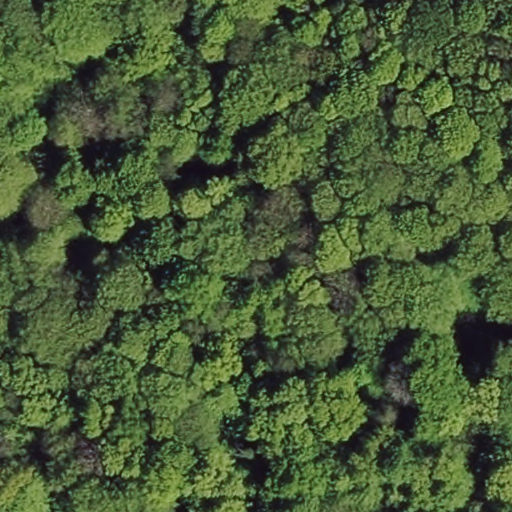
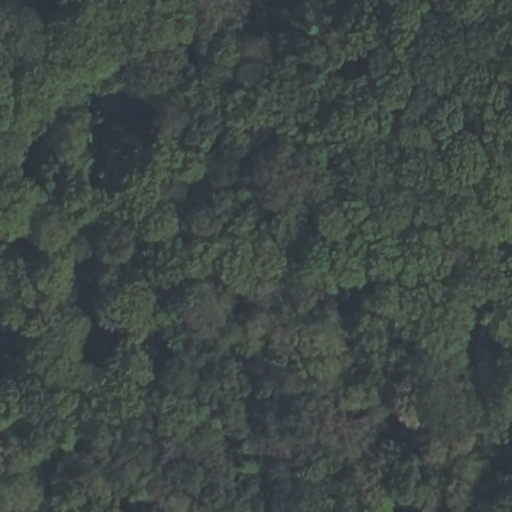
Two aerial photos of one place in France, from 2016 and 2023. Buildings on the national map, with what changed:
[]

